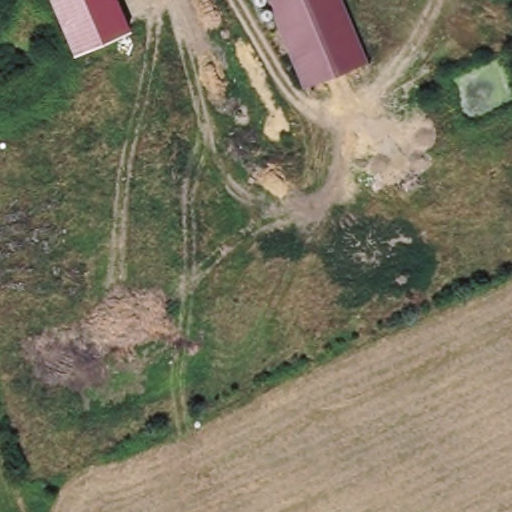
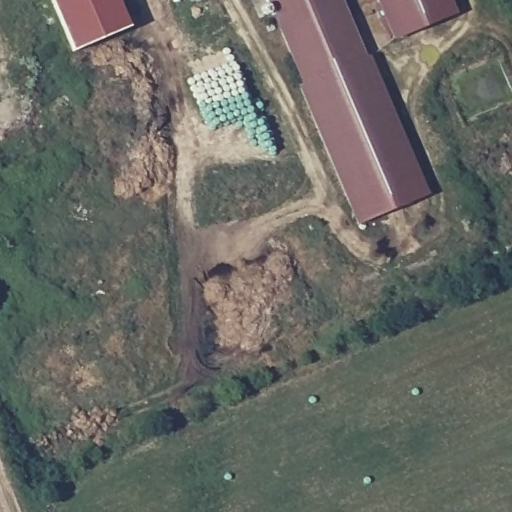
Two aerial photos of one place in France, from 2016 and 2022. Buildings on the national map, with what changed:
unchanged [(132,26),(73,52),(52,0),(120,0),(132,26)]
unchanged [(363,61),(301,86),(266,0),(338,0),(363,61)]
new [(454,14),(394,41),(376,0),(448,0),(454,14)]
new [(370,57),(427,195),(355,225),(296,88),(301,86),(363,61),(370,57)]

